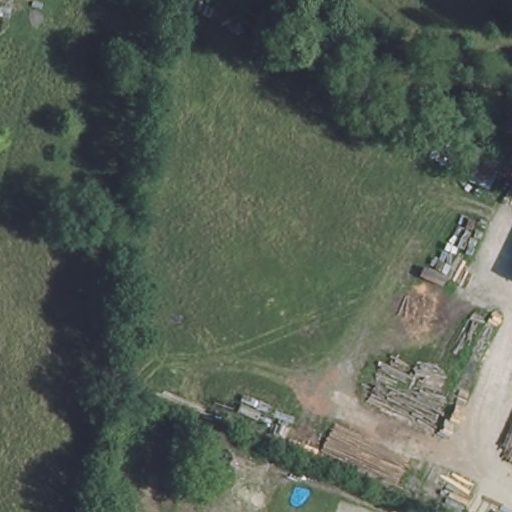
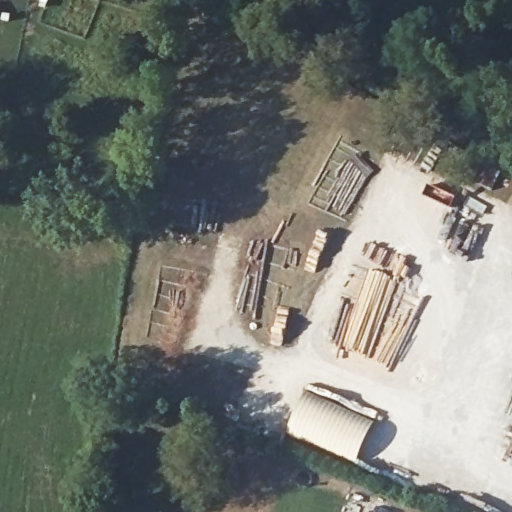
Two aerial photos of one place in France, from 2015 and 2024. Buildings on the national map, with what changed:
new [(305,391),(374,422),(355,463),(286,433),(305,391)]

